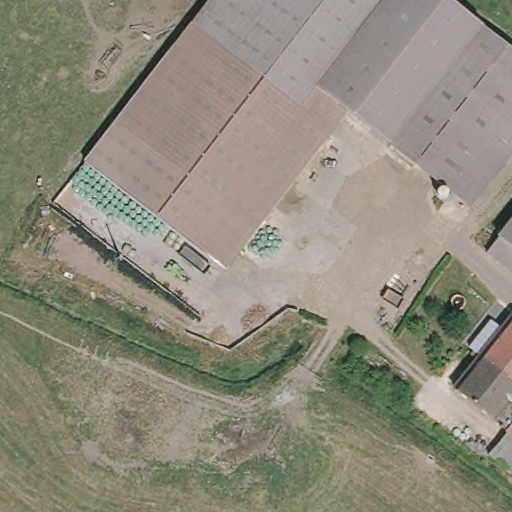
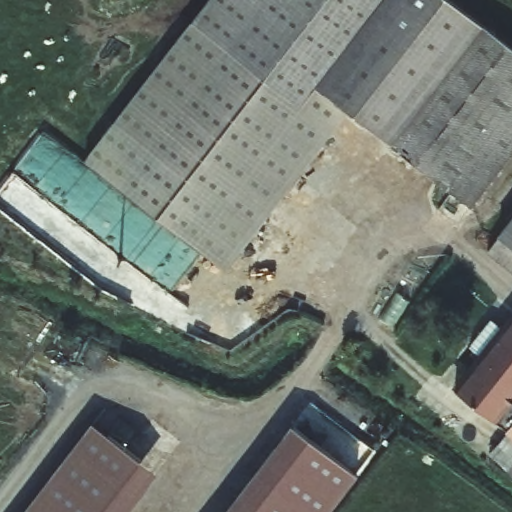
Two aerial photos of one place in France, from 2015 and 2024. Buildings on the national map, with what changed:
unchanged [(220,268),(112,183),(82,160),(208,0),(447,0),(512,51),(512,149),(467,206),(345,110),(220,268)]
unchanged [(512,269),(490,252),(512,223),(512,269)]
unchanged [(510,432),(457,390),(480,361),(475,356),(478,352),(476,350),(498,322),(505,328),(512,319),(512,470),(492,453),(510,432)]
new [(91,424),(157,472),(127,512),(24,512),(91,424)]
new [(290,425),(356,477),(330,512),(222,512),(290,425)]

